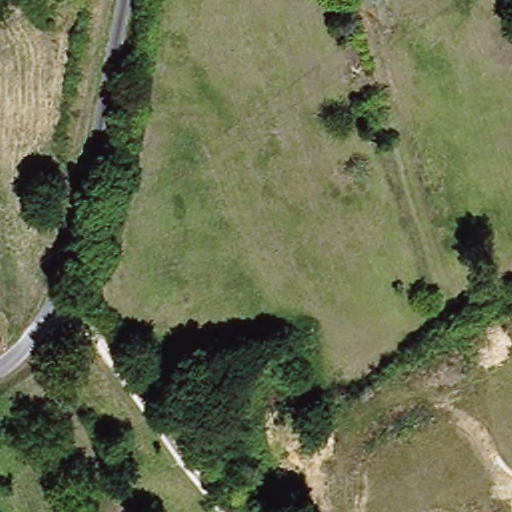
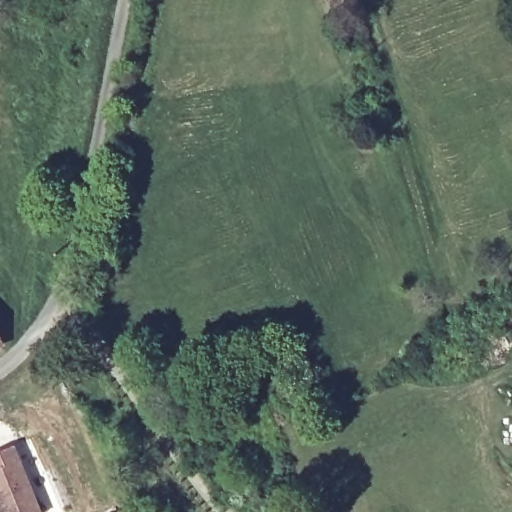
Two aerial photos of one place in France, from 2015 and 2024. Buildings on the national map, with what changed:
new [(13,445),(41,512),(0,512),(0,451),(13,445)]

